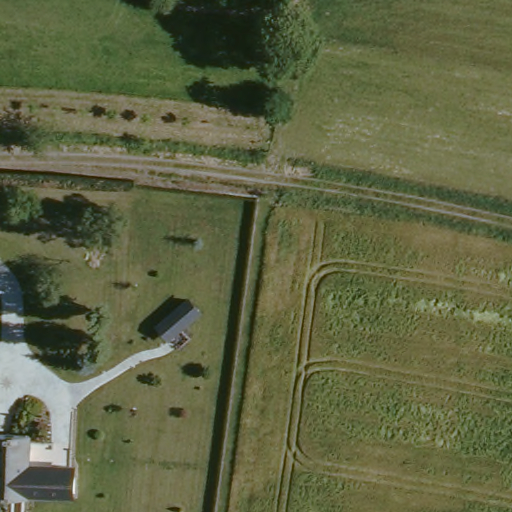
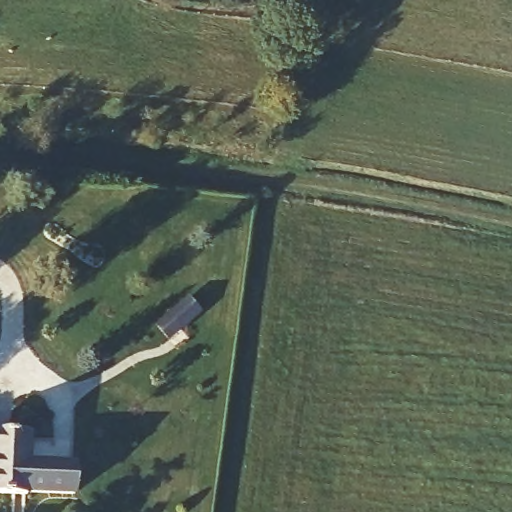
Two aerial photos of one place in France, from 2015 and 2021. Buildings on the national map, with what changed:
unchanged [(204,311),(169,341),(154,325),(189,296),(204,311)]
unchanged [(23,496),(0,496),(0,436),(27,437),(25,462),(24,490),(23,496)]
unchanged [(72,465),(72,492),(24,490),(25,462),(72,465)]

